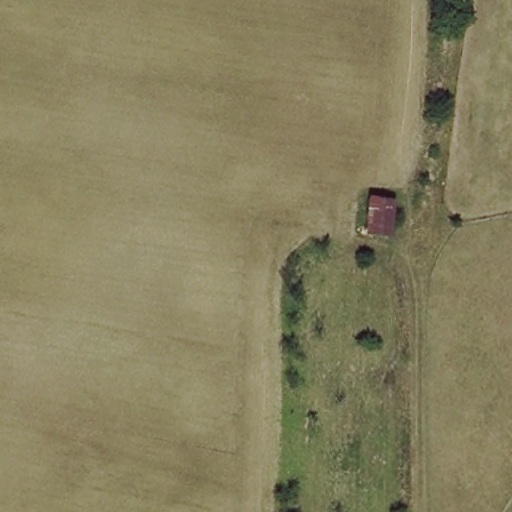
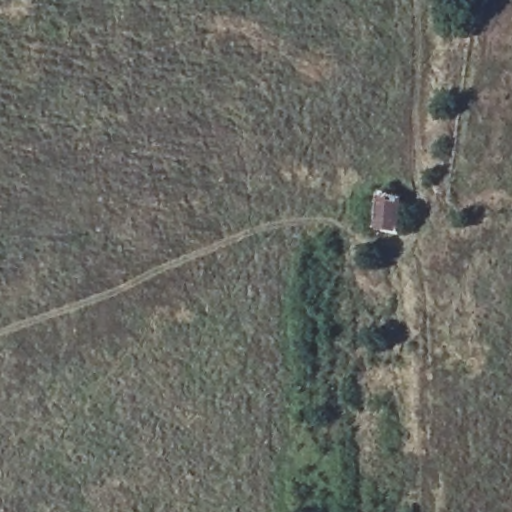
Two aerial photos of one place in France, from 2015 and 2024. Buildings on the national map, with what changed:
unchanged [(399,235),(375,230),(378,196),(402,200),(399,235)]

